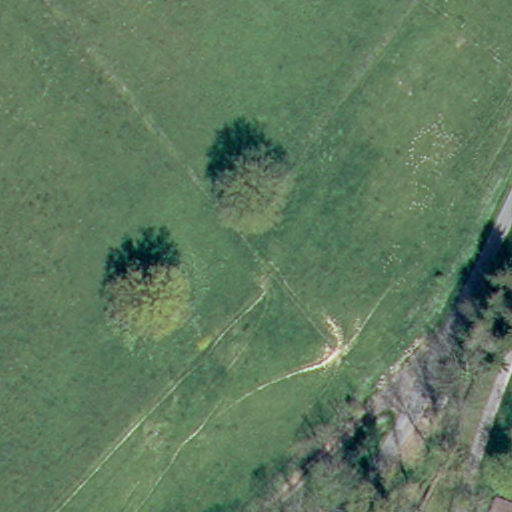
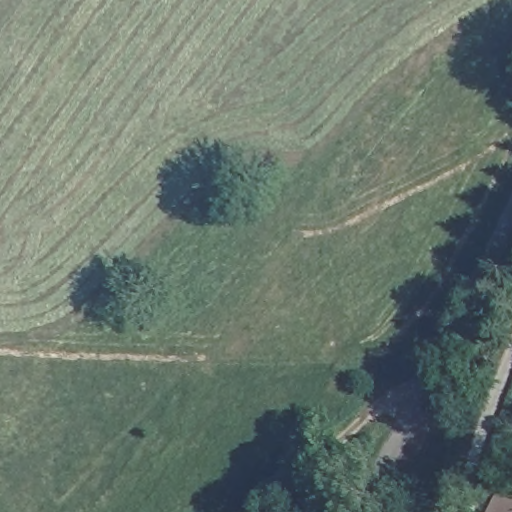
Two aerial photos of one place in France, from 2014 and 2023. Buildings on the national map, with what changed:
unchanged [(481,484),(502,489),(504,479),(512,482),(512,496),(508,512),(475,512),(481,484)]

